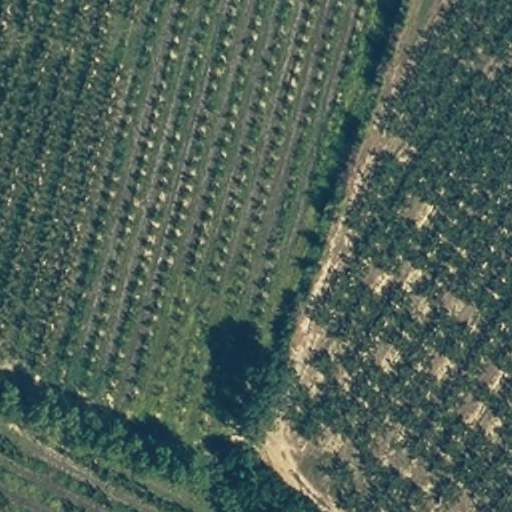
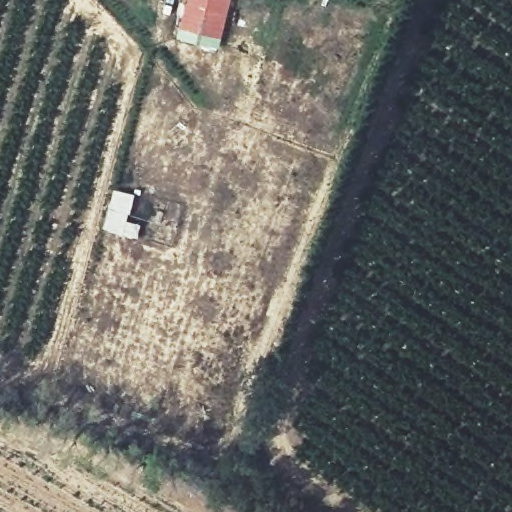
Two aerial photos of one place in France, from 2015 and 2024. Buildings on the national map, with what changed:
new [(231,0),(218,51),(174,39),(184,0),(231,0)]

